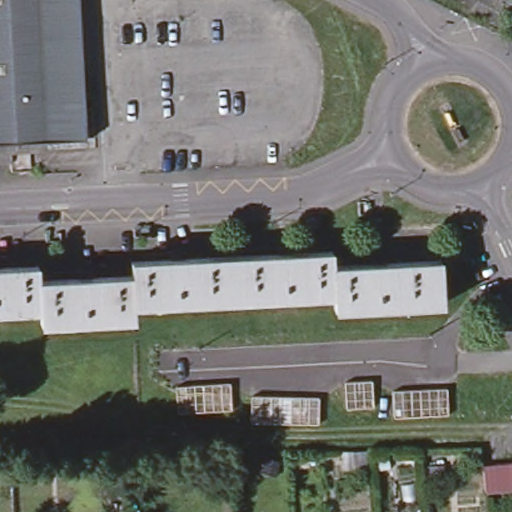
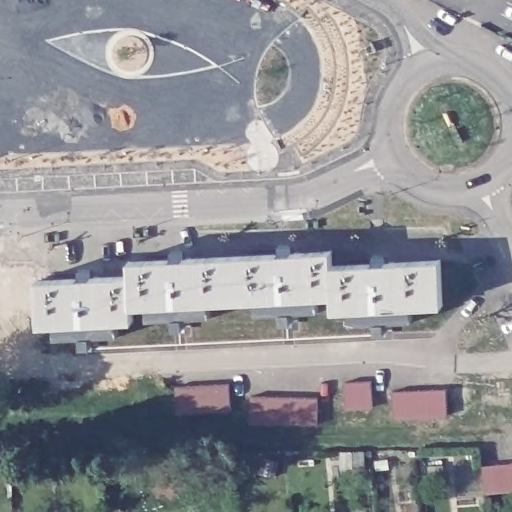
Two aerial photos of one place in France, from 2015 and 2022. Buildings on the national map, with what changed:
demolished [(0,142),(0,0),(79,0),(86,137),(0,142)]
unchanged [(39,284),(131,279),(130,265),(331,254),(332,268),(442,262),(445,305),(334,311),(333,295),(132,307),(133,322),(42,327),(41,312),(0,315),(0,273),(39,271),(39,284)]
unchanged [(512,315),(512,324),(512,333),(495,334),(494,317),(512,315)]
unchanged [(385,379),(387,406),(331,410),(329,382),(385,379)]
unchanged [(231,384),(231,413),(179,412),(180,383),(231,384)]
unchanged [(446,388),(447,416),(393,419),(392,391),(446,388)]
unchanged [(302,392),(304,420),(296,420),(270,419),(262,418),(262,391),(302,392)]
unchanged [(489,494),(486,467),(512,464),(512,492),(489,494)]

